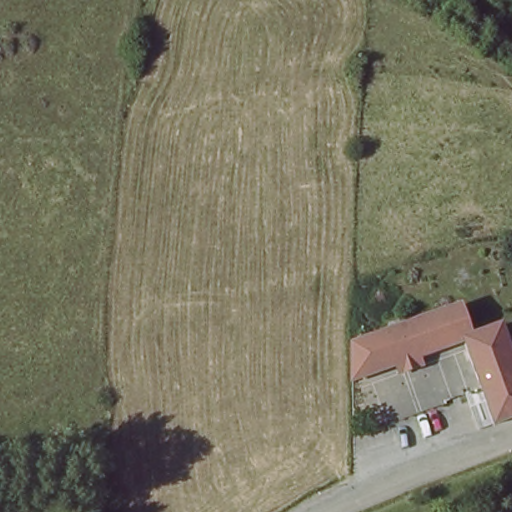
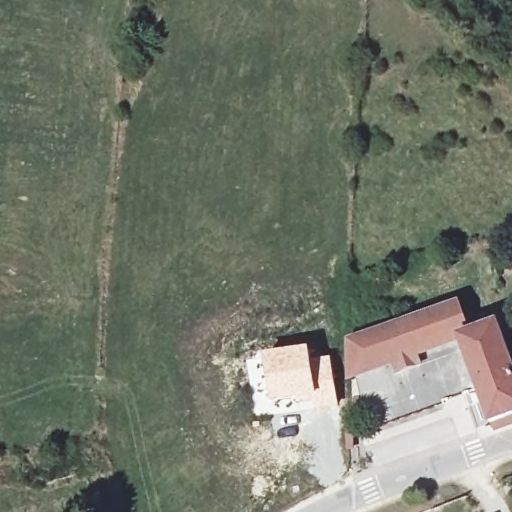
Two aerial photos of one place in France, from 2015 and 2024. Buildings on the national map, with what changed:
unchanged [(414,355),(409,343),(389,349),(383,332),(463,306),(472,336),(462,339),(414,355)]
unchanged [(501,327),(512,360),(512,418),(491,426),(462,339),(472,336),(501,327)]
unchanged [(417,365),(393,373),(390,365),(353,376),(353,342),(383,332),(389,349),(409,343),(414,355),(417,365)]
new [(311,348),(313,359),(314,402),(272,406),(264,356),(311,348)]
new [(331,356),(339,406),(316,409),(314,402),(313,359),(331,356)]

